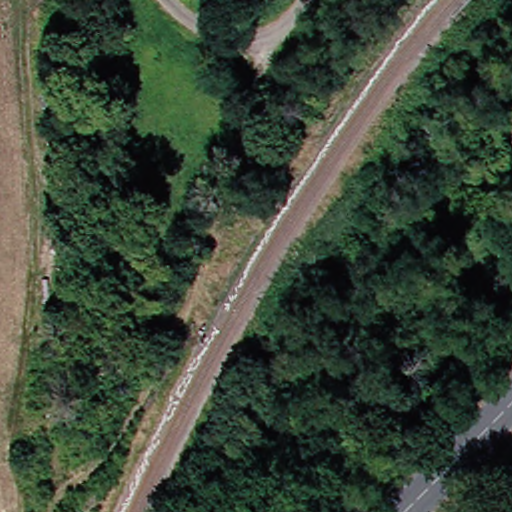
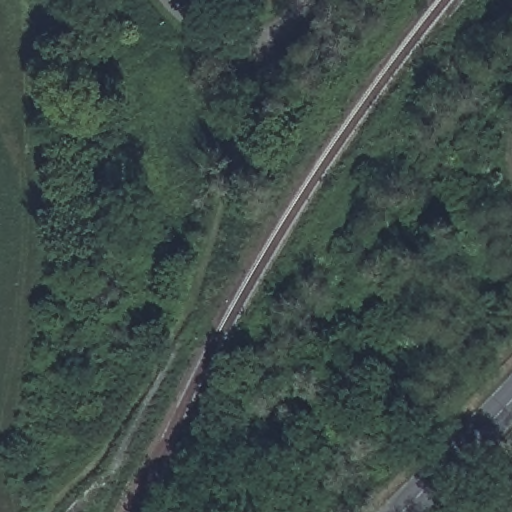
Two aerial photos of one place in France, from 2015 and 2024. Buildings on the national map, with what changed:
unchanged [(78,362),(104,344),(129,377),(104,397),(78,362)]

